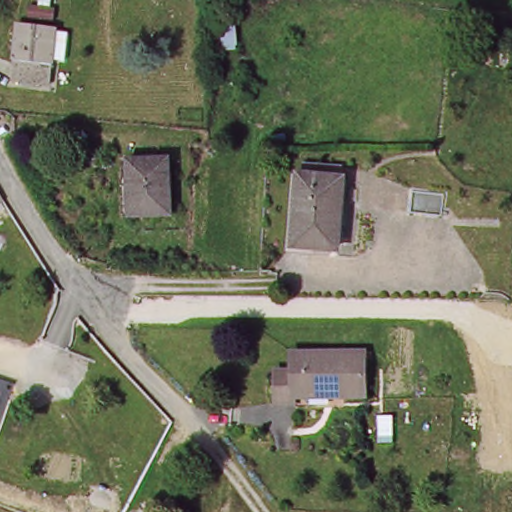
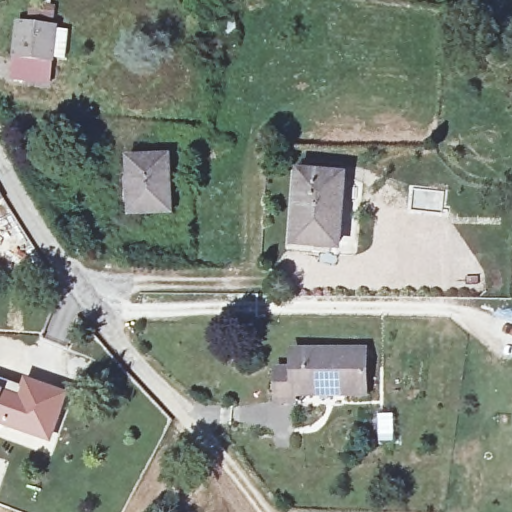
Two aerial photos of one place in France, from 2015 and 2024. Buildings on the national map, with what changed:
unchanged [(14,24),(50,29),(50,32),(64,34),(60,60),(47,58),(45,80),(44,87),(7,82),(7,76),(14,24)]
unchanged [(223,56),(207,56),(205,32),(222,31),(223,56)]
unchanged [(167,212),(125,213),(121,157),(162,154),(167,212)]
unchanged [(341,179),(339,248),(297,246),(300,178),(341,179)]
unchanged [(1,200),(0,201),(0,198),(1,200)]
unchanged [(369,401),(349,402),(349,397),(300,399),(300,410),(282,410),(282,378),(297,377),(297,361),(368,358),(369,401)]
new [(20,387),(24,377),(70,395),(51,445),(0,428),(0,379),(20,387)]

